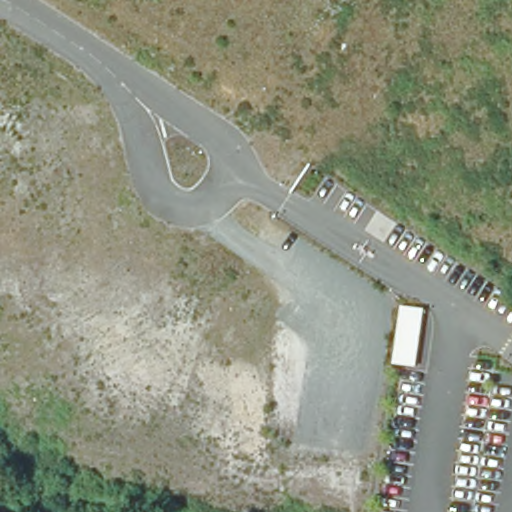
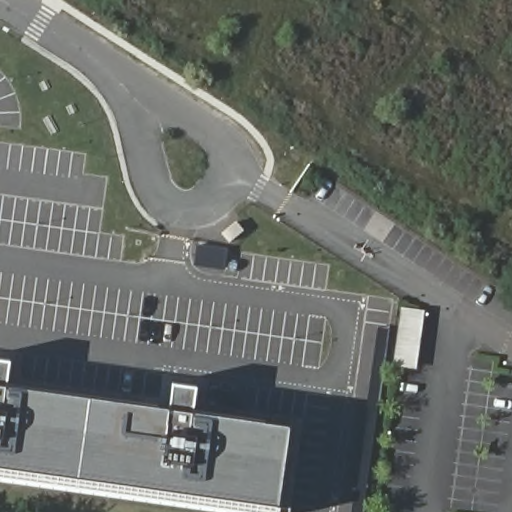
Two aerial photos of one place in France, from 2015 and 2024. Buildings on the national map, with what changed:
new [(197,245),(226,249),(224,268),(195,264),(197,245)]
unchanged [(417,368),(392,366),(400,306),(426,309),(417,368)]
new [(7,383),(169,406),(172,382),(196,386),(193,409),(291,423),(279,512),(250,512),(0,477),(0,358),(10,360),(7,383)]

